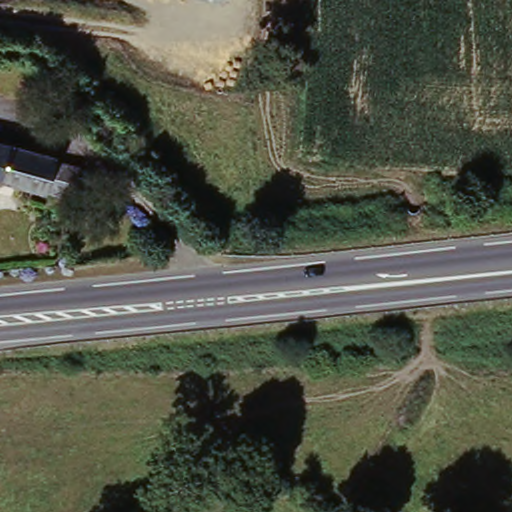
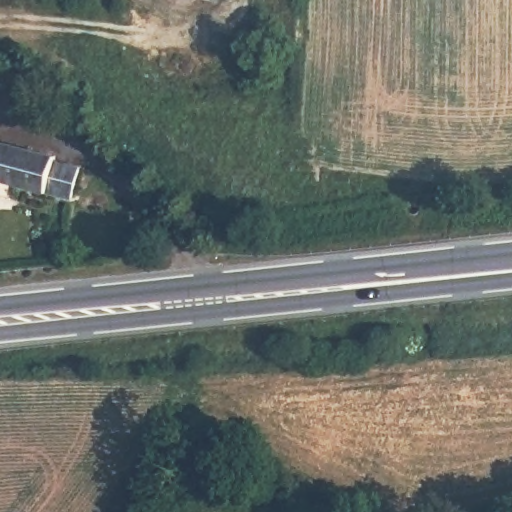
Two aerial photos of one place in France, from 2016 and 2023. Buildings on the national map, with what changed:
unchanged [(223,0),(222,4),(204,0),(223,0)]
unchanged [(54,155),(55,159),(77,164),(67,198),(0,179),(0,141),(54,155)]

